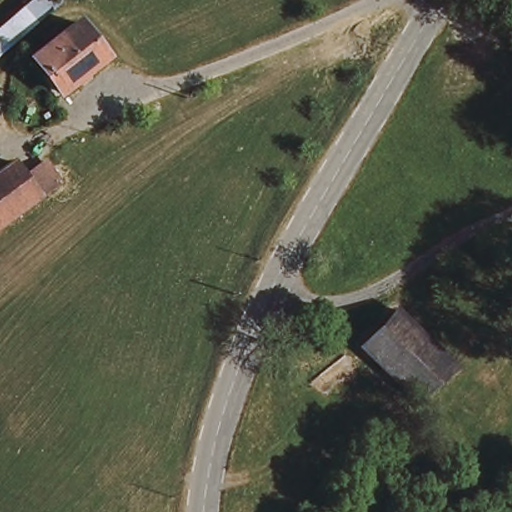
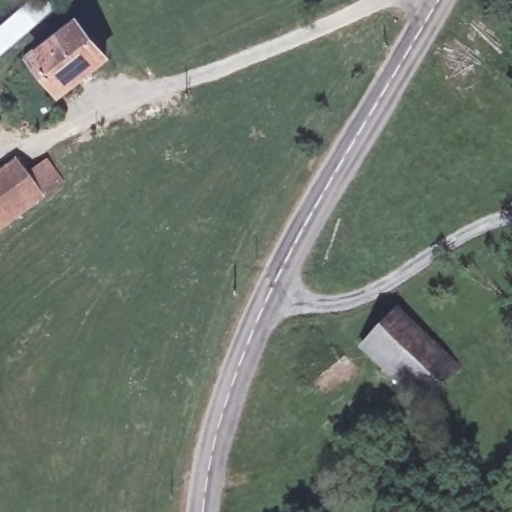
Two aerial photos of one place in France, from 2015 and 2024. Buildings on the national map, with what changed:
unchanged [(57,14),(0,58),(0,23),(31,0),(46,0),(57,14)]
unchanged [(112,51),(70,88),(39,55),(75,22),(79,19),(112,51)]
unchanged [(51,162),(65,179),(45,196),(0,233),(0,180),(18,164),(30,179),(51,162)]
unchanged [(403,310),(456,361),(421,397),(397,373),(371,348),(403,310)]

